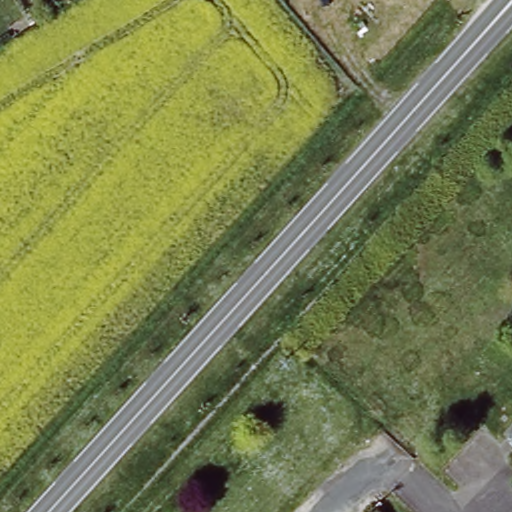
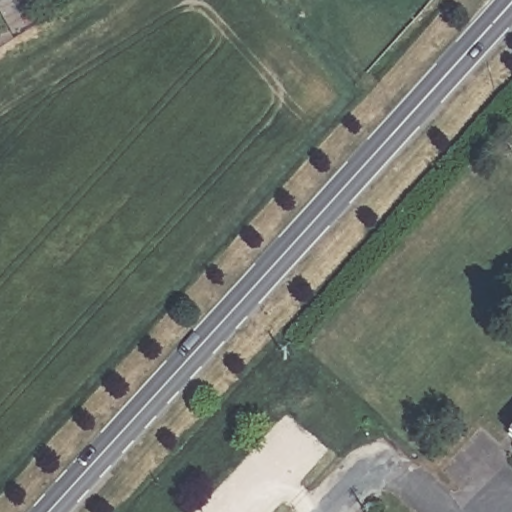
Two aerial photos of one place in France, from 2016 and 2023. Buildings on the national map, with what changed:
unchanged [(507,435),(512,430),(512,440),(507,435)]

